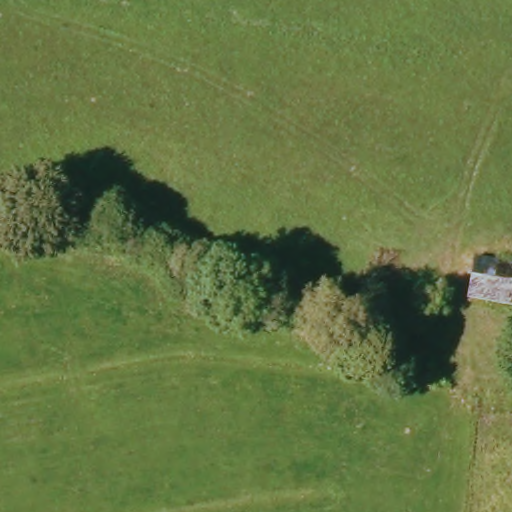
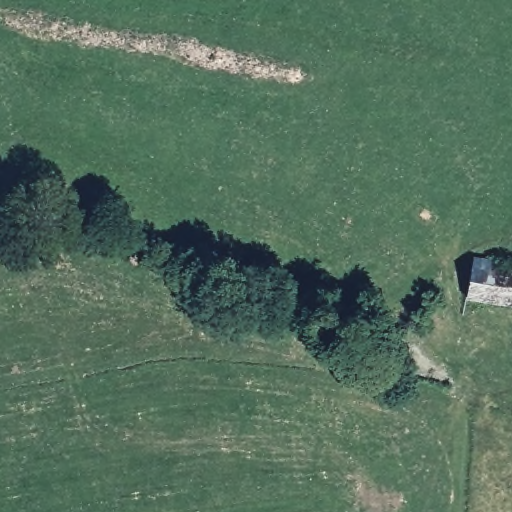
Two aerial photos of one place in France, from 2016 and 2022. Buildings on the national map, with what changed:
unchanged [(473,262),(512,268),(512,310),(465,302),(473,262)]

